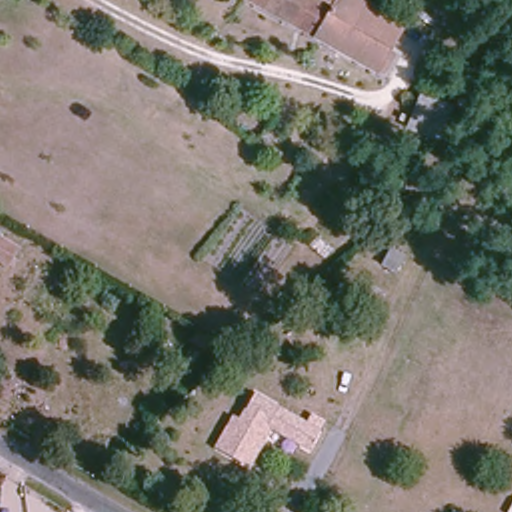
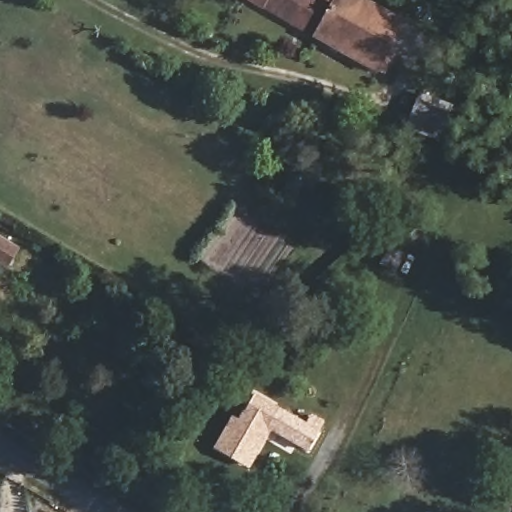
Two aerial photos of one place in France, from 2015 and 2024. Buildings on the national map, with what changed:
unchanged [(334,0),(368,0),(408,21),(380,74),(243,0),(328,0),(332,3),(334,0)]
unchanged [(496,114),(509,87),(512,88),(512,119),(509,124),(496,114)]
unchanged [(454,104),(441,141),(408,130),(420,90),(454,104)]
unchanged [(21,249),(9,265),(0,260),(0,237),(21,249)]
unchanged [(381,266),(392,246),(408,253),(396,275),(381,266)]
unchanged [(324,432),(313,455),(267,429),(250,462),(219,445),(233,419),(239,422),(255,396),(324,432)]

